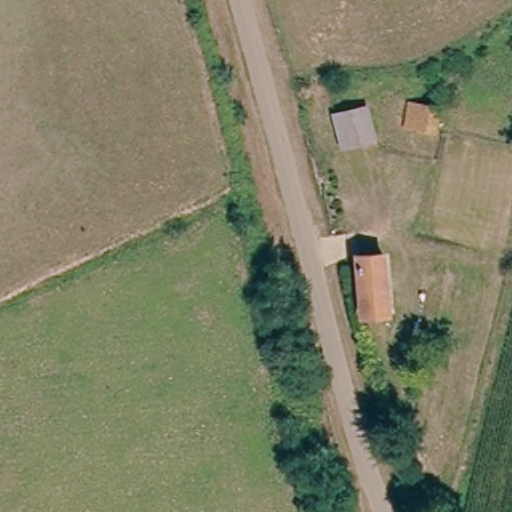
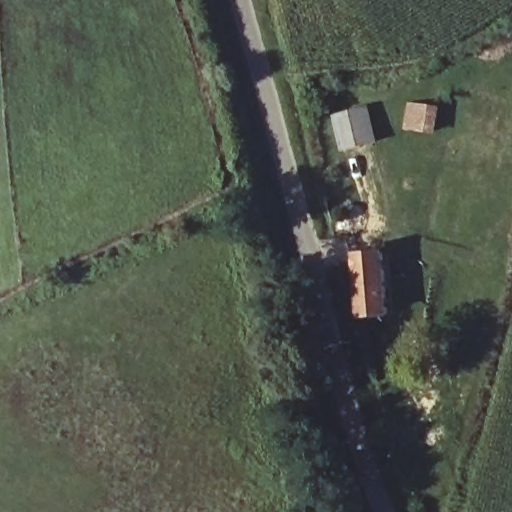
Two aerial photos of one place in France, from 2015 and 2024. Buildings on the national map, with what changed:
unchanged [(437,134),(407,131),(411,102),(423,104),(424,95),(436,96),(435,105),(440,106),(437,134)]
unchanged [(363,102),(377,141),(342,153),(328,114),(363,102)]
unchanged [(380,258),(385,311),(361,313),(357,261),(380,258)]

